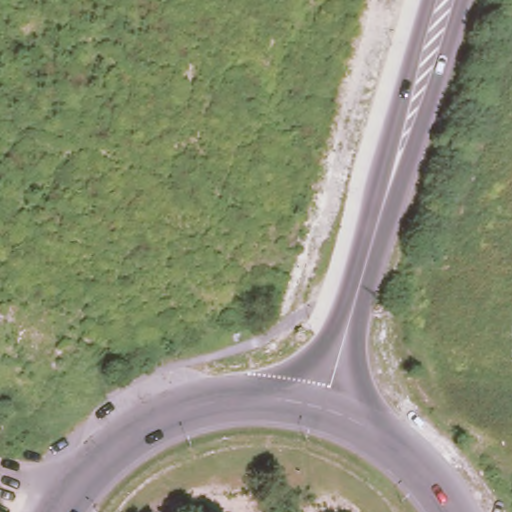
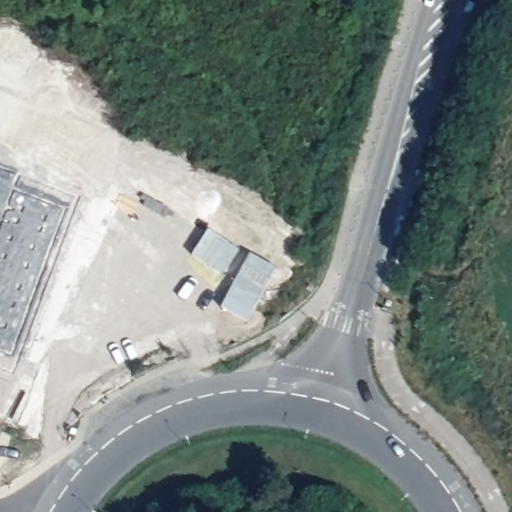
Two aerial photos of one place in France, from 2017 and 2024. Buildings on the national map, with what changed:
new [(0,169),(17,175),(12,189),(65,209),(12,355),(0,351),(0,169)]

